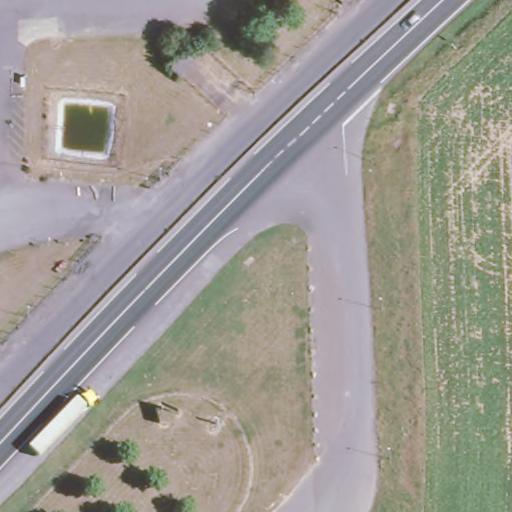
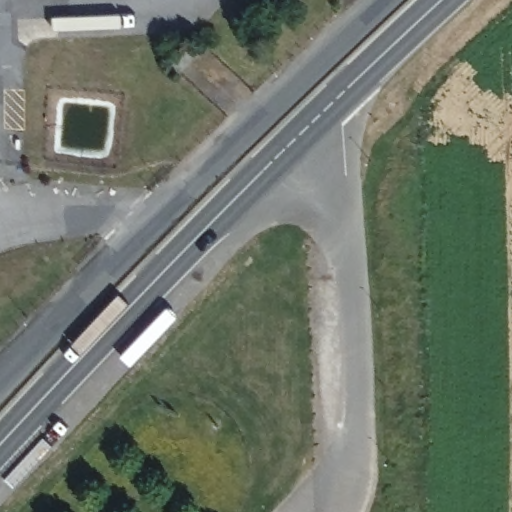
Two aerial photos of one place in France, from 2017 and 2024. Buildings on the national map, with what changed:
unchanged [(173,62),(183,50),(188,43),(198,52),(184,70),(183,69),(173,62)]

